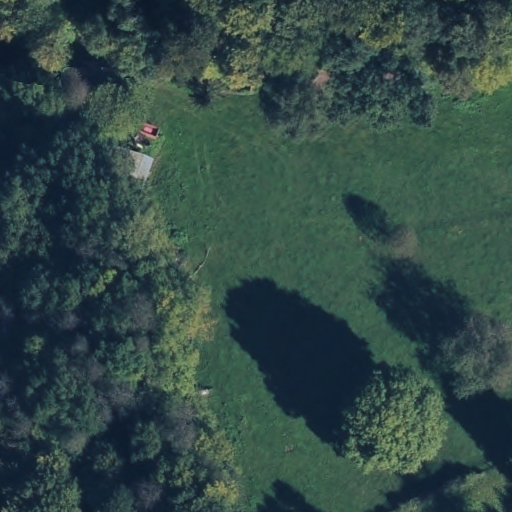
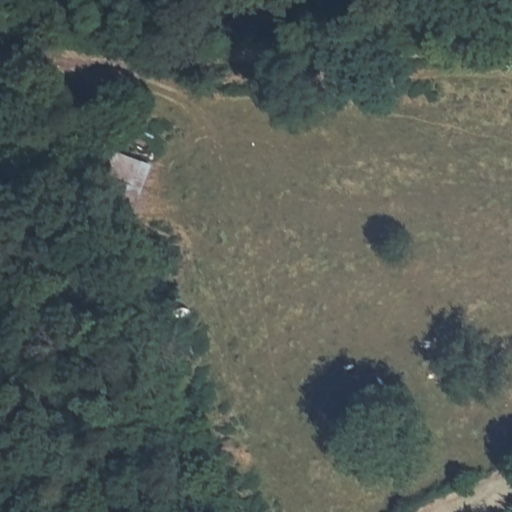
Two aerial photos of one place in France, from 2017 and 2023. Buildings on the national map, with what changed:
unchanged [(144,189),(86,172),(96,141),(154,160),(144,189)]

